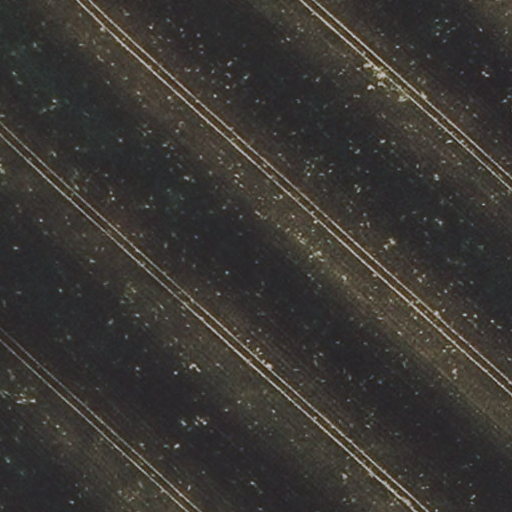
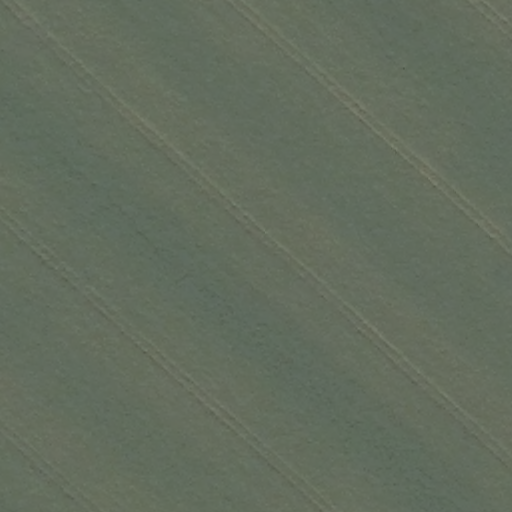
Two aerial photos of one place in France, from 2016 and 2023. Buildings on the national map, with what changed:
[]

